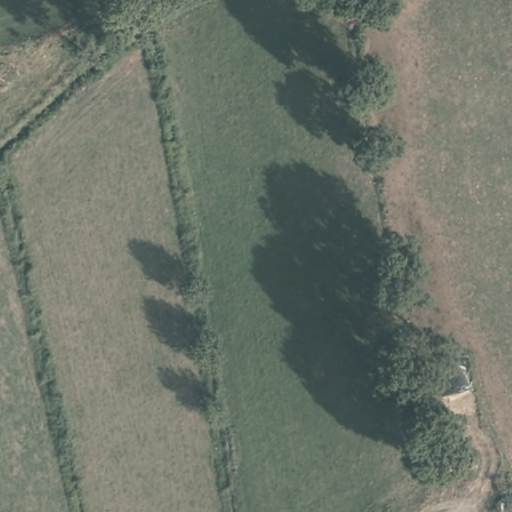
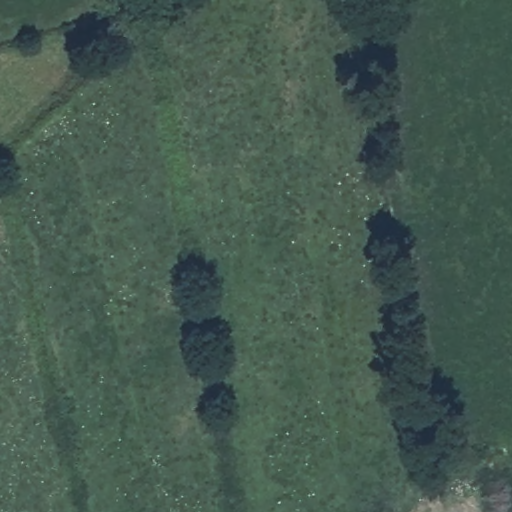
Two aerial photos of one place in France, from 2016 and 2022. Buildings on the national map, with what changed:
[]

